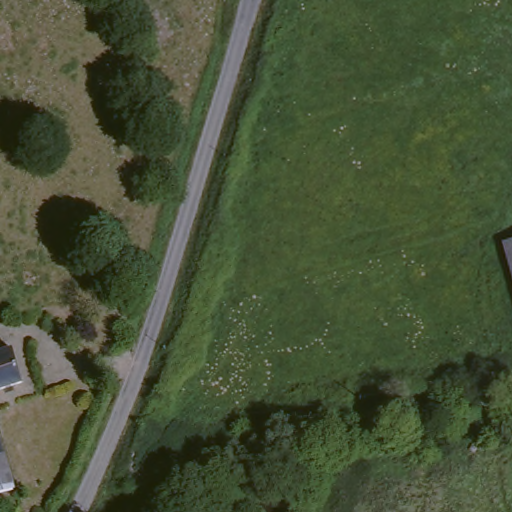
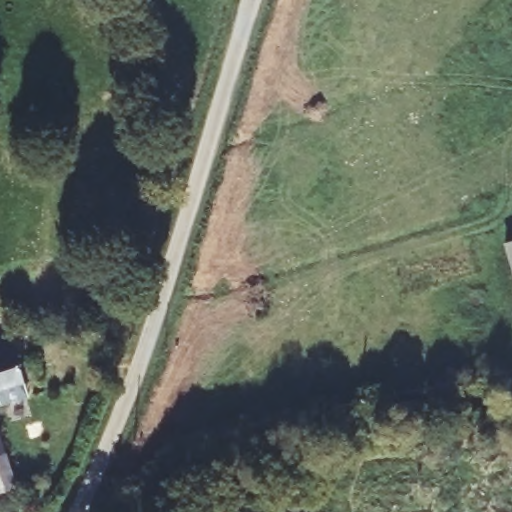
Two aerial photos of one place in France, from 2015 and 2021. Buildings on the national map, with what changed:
unchanged [(511,239),(512,239),(512,241),(511,239)]
unchanged [(27,382),(0,390),(0,353),(17,348),(27,382)]
unchanged [(0,493),(0,439),(4,452),(10,471),(13,482),(15,488),(0,493)]

